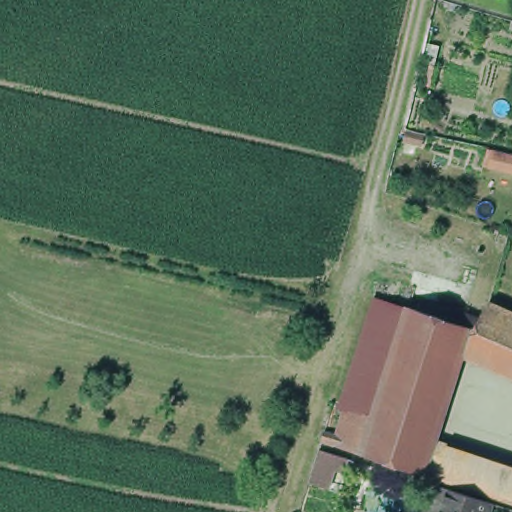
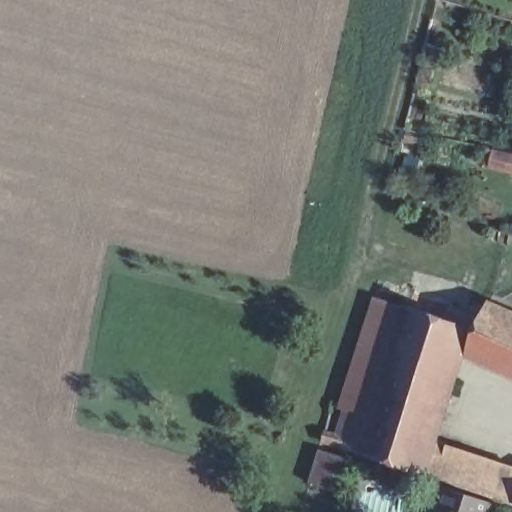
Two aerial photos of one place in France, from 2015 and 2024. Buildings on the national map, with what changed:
unchanged [(375,389),(345,379),(371,293),(402,302),(375,389)]
unchanged [(470,326),(484,297),(512,309),(512,360),(464,340),(470,326)]
unchanged [(512,498),(423,470),(410,466),(356,448),(367,412),(375,389),(402,302),(457,320),(438,379),(447,382),(437,411),(428,408),(422,429),(433,433),(431,442),(441,445),(442,441),(512,464),(512,498)]
unchanged [(322,427),(334,431),(342,403),(367,412),(356,448),(330,441),(318,437),(322,427)]
unchanged [(426,502),(432,481),(473,492),(485,497),(481,512),(423,512),(426,502)]
unchanged [(512,506),(512,512),(510,512),(512,506)]

